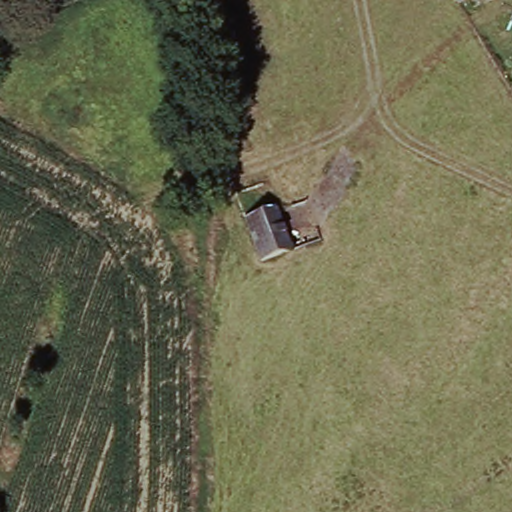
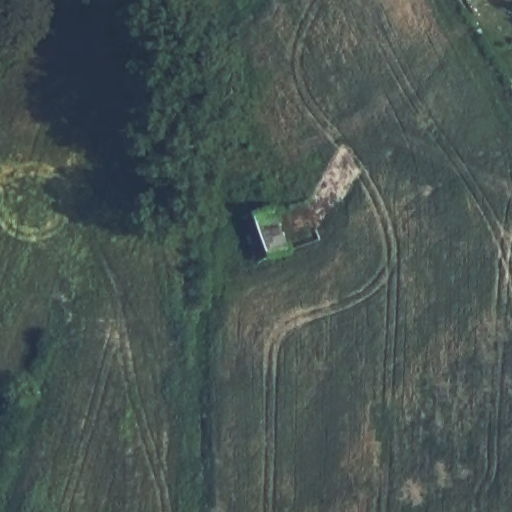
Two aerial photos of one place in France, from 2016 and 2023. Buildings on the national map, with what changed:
unchanged [(292,252),(262,262),(246,219),(275,208),(292,252)]

